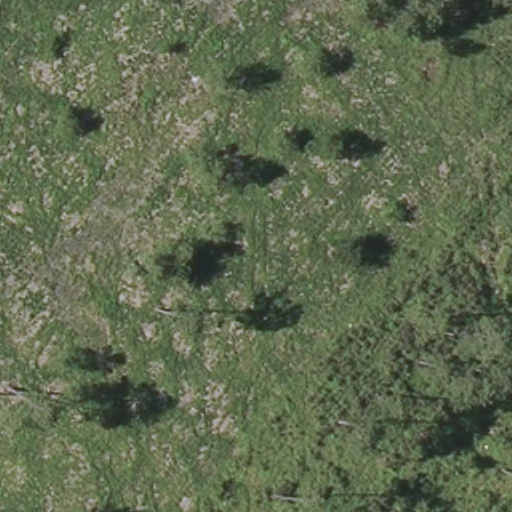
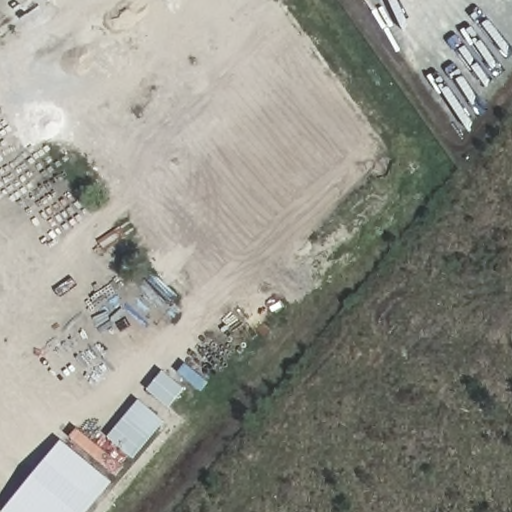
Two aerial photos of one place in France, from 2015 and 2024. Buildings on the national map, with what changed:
new [(183,388),(168,406),(147,389),(163,371),(183,388)]
new [(139,400),(163,421),(132,457),(108,436),(139,400)]
new [(62,440),(112,482),(87,512),(3,512),(62,440)]

